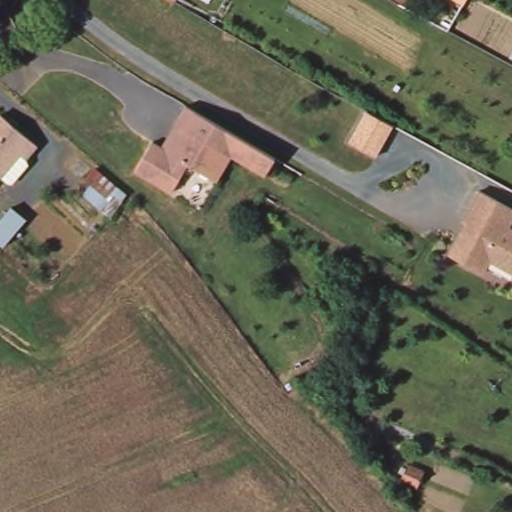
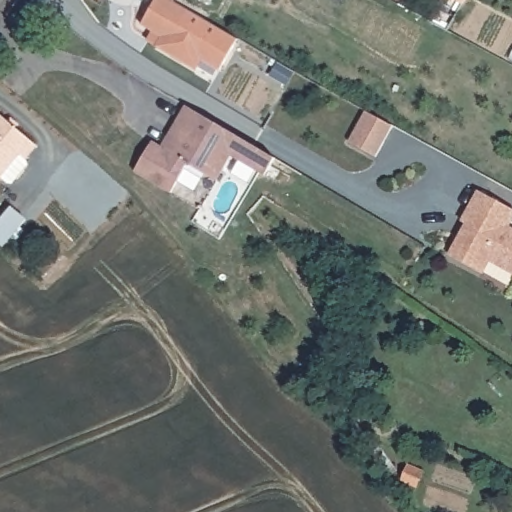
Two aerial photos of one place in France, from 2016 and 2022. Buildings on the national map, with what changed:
new [(237,39),(219,70),(202,60),(196,70),(146,41),(151,31),(141,25),(155,0),(171,0),(237,39)]
unchanged [(461,3),(457,0),(462,0),(461,3)]
new [(357,106),(383,120),(367,151),(341,137),(357,106)]
unchanged [(182,131),(178,128),(191,107),(234,133),(273,156),(262,175),(236,158),(228,169),(177,137),(182,131)]
unchanged [(29,147),(0,182),(0,116),(34,142),(29,147)]
unchanged [(221,183),(192,166),(175,192),(139,171),(157,143),(169,150),(177,137),(228,169),(221,183)]
unchanged [(133,194),(126,208),(115,200),(107,214),(88,196),(92,188),(79,174),(89,157),(133,194)]
unchanged [(457,221),(475,189),(512,209),(512,216),(508,226),(512,228),(512,274),(485,261),(480,273),(445,255),(461,223),(457,221)]
unchanged [(1,246),(0,245),(0,218),(11,207),(25,220),(1,246)]
new [(408,467),(423,473),(416,491),(401,484),(408,467)]

